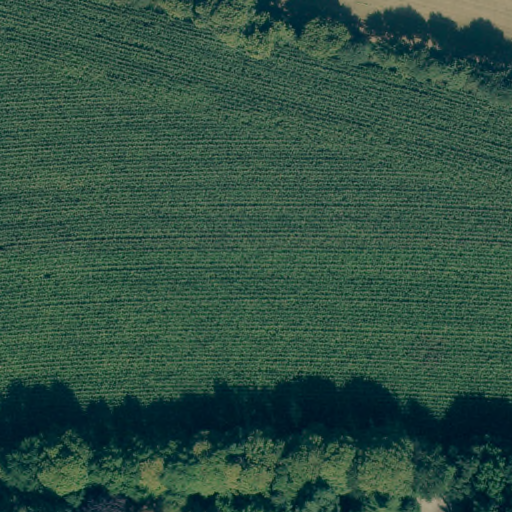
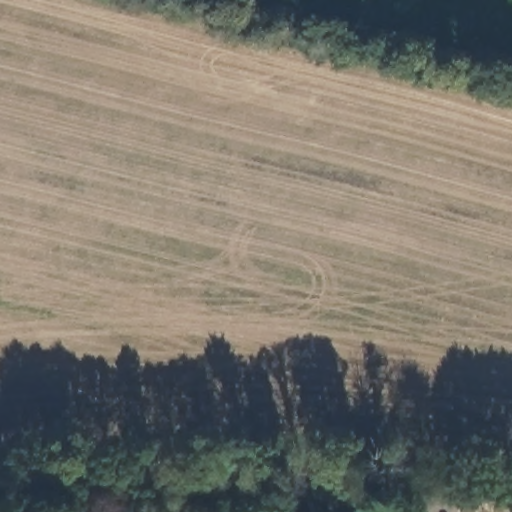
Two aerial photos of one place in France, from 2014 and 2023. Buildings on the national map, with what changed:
[]

